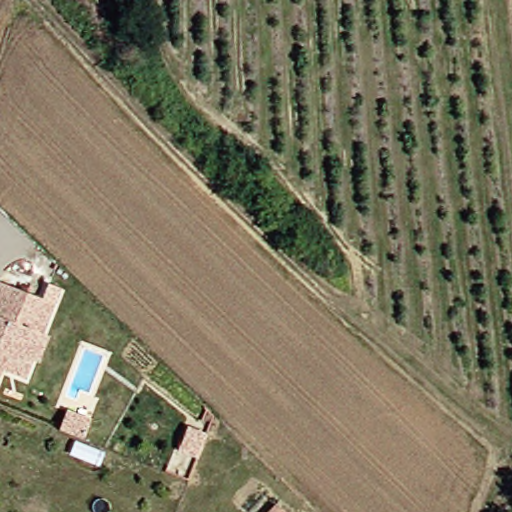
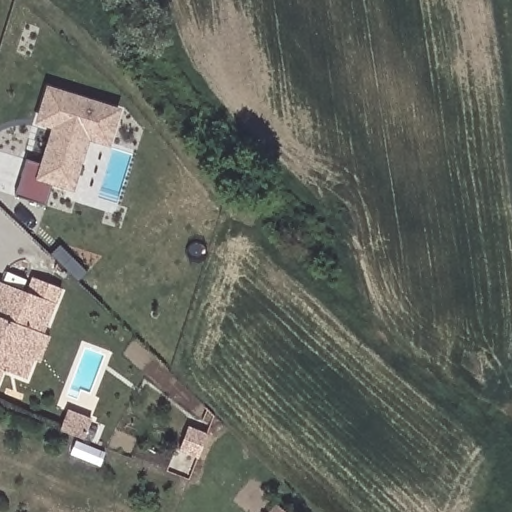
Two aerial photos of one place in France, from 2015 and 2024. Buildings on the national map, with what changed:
new [(42,119),(52,86),(123,108),(112,141),(89,133),(73,186),(56,180),(49,204),(18,195),(30,157),(42,119)]
unchanged [(28,364),(20,385),(0,377),(0,290),(50,309),(37,340),(44,342),(35,366),(28,364)]
new [(70,408),(91,417),(83,438),(61,430),(70,408)]
new [(287,512),(272,512),(280,504),(287,512)]

